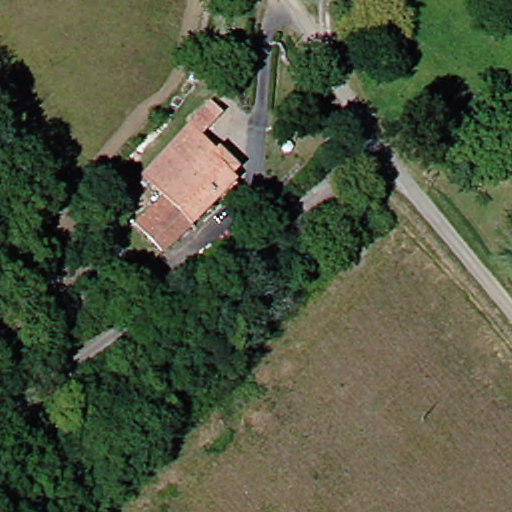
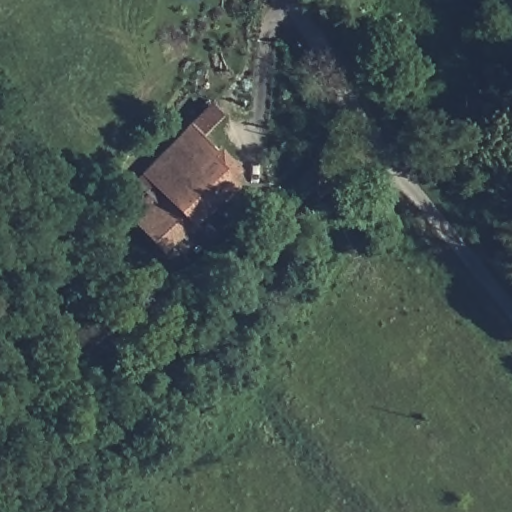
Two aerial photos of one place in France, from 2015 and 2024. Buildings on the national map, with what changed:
unchanged [(220,106),(232,116),(216,135),(232,152),(226,160),(248,184),(178,254),(149,225),(175,202),(152,179),(220,106)]

